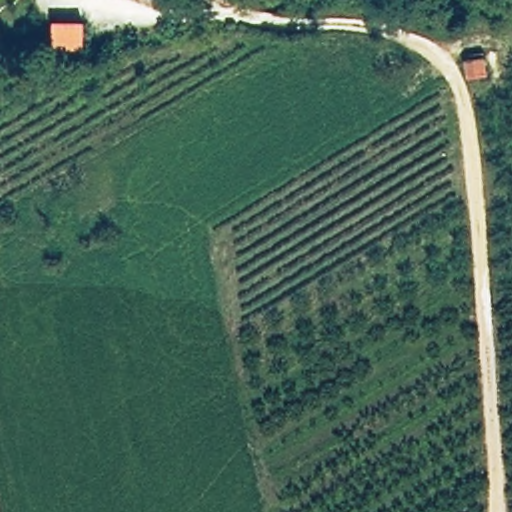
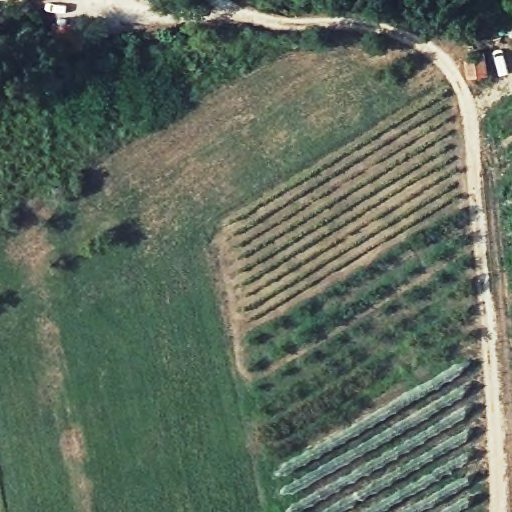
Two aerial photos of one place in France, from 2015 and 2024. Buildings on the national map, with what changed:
unchanged [(49,22),(82,21),(83,47),(50,48),(49,22)]
unchanged [(484,55),(487,77),(467,79),(464,63),(484,55)]

